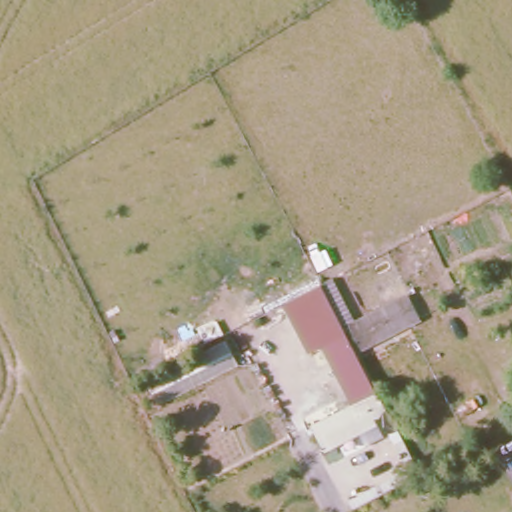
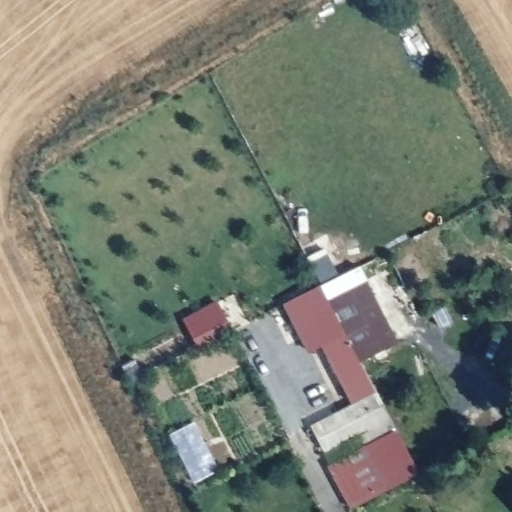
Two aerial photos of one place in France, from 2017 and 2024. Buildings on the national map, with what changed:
unchanged [(422,321),(357,354),(353,346),(333,356),(313,312),(322,308),(315,290),(337,281),(355,322),(407,298),(422,321)]
unchanged [(322,308),(313,312),(333,356),(353,346),(357,354),(375,393),(352,405),(322,346),(308,352),(282,303),(315,290),(322,308)]
new [(217,301),(234,332),(198,351),(182,320),(217,301)]
unchanged [(313,425),(379,391),(392,414),(324,447),(313,425)]
new [(420,474),(352,510),(327,467),(363,447),(357,431),(388,416),(420,474)]

